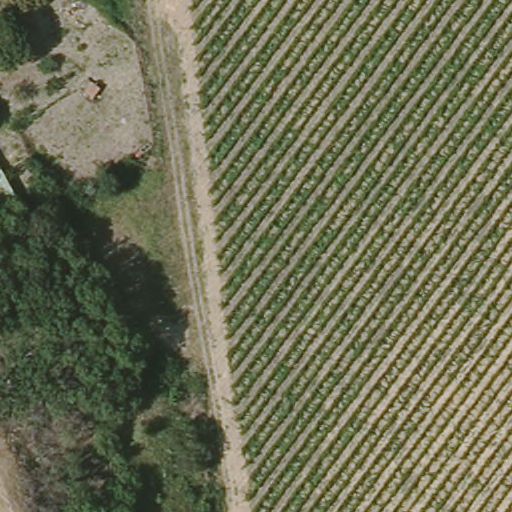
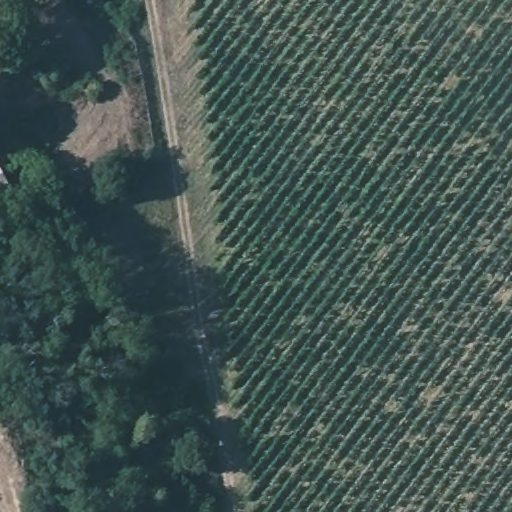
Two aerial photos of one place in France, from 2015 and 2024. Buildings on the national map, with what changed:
unchanged [(0,204),(12,229),(0,232),(0,204)]

